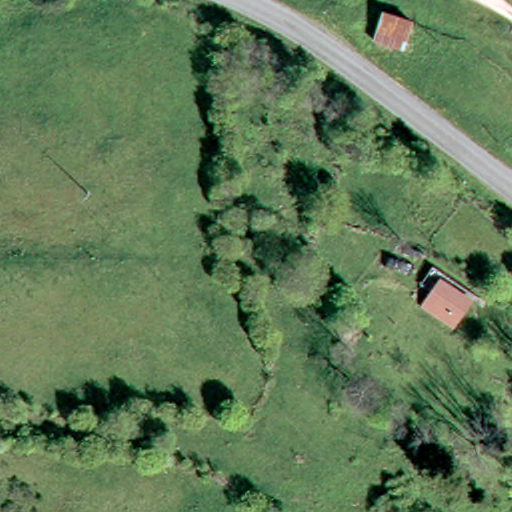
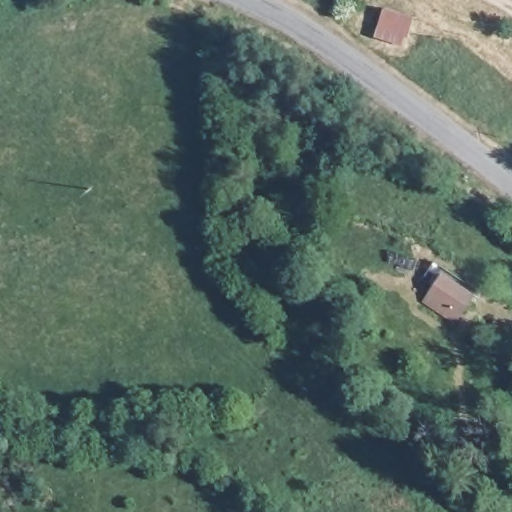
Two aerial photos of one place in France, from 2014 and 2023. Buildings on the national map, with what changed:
unchanged [(380,6),(409,18),(399,44),(371,34),(380,6)]
unchanged [(422,291),(434,275),(464,299),(452,314),(422,291)]

